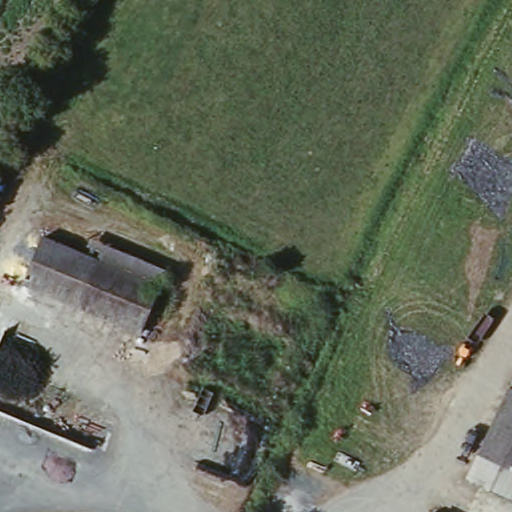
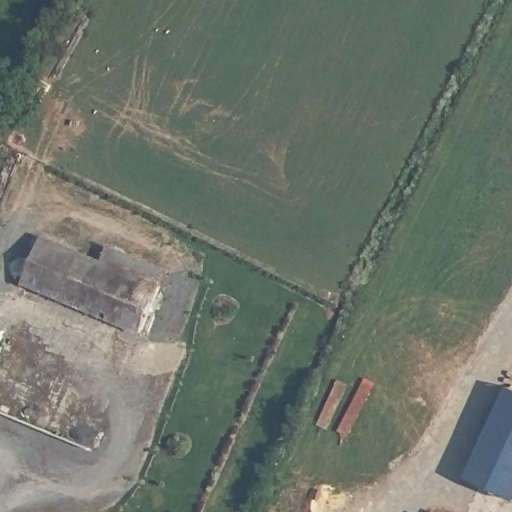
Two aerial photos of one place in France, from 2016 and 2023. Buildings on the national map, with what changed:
unchanged [(49,219),(172,266),(166,284),(42,238),(49,219)]
unchanged [(166,284),(145,335),(22,289),(42,238),(166,284)]
unchanged [(512,499),(465,478),(509,386),(512,387),(512,499)]

